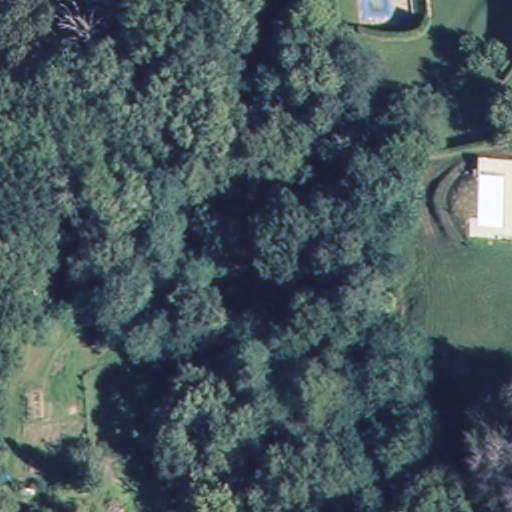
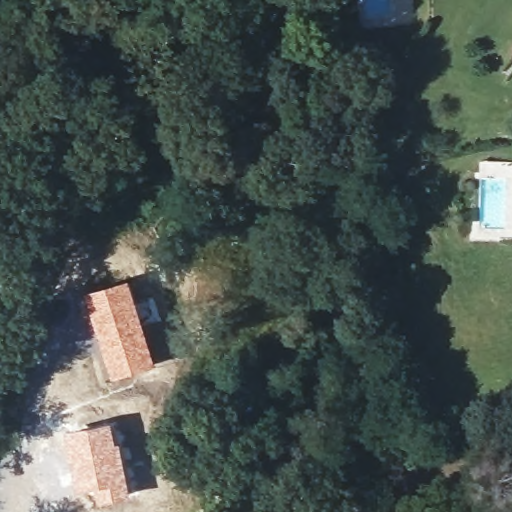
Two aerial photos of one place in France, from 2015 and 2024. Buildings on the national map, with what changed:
new [(129,280),(157,367),(111,381),(83,295),(129,280)]
new [(113,422),(123,454),(132,497),(77,509),(62,433),(113,422)]

